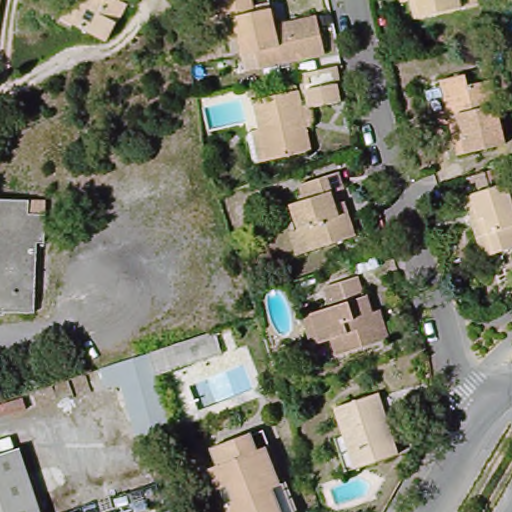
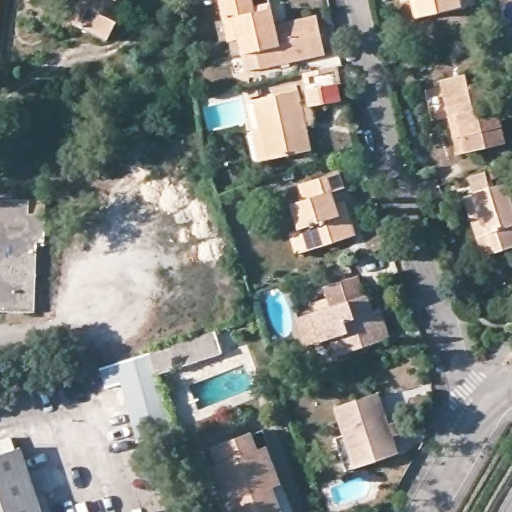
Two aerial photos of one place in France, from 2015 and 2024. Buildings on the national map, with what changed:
unchanged [(120,0),(127,4),(108,42),(70,22),(65,20),(75,0),(120,0)]
unchanged [(273,9),(278,25),(316,15),(326,54),(262,71),(257,51),(242,55),(238,40),(231,42),(221,2),(226,0),(254,0),(258,12),(273,9)]
unchanged [(413,19),(409,0),(474,0),(475,4),(413,19)]
unchanged [(442,76),(466,70),(469,80),(493,75),(508,138),(458,150),(454,132),(450,112),(442,76)]
unchanged [(254,136),(261,134),(254,106),(307,94),(304,79),(339,72),(343,89),(340,91),(343,104),(311,112),(314,127),(313,132),(309,134),(314,155),(268,166),(261,167),(254,136)]
unchanged [(300,229),(292,205),(307,201),(302,184),(340,172),(345,188),(333,192),(336,203),(340,202),(345,202),(350,213),(357,235),(316,248),(308,252),(300,229)]
unchanged [(480,257),(468,219),(462,197),(469,195),(502,184),(509,208),(512,207),(512,246),(480,257)]
unchanged [(45,243),(38,243),(35,313),(0,312),(0,200),(47,202),(45,243)]
unchanged [(308,321),(318,318),(338,312),(332,292),(364,281),(370,301),(372,300),(378,317),(386,313),(390,326),(396,342),(344,361),(338,343),(328,347),(318,351),(308,321)]
unchanged [(221,337),(228,360),(161,381),(155,358),(221,337)]
unchanged [(161,381),(177,437),(144,446),(126,390),(111,394),(105,375),(155,358),(161,381)]
unchanged [(336,438),(345,436),(337,407),(378,393),(388,423),(397,421),(402,435),(392,437),(397,453),(357,468),(347,472),(336,438)]
unchanged [(211,473),(218,471),(211,453),(250,437),(250,439),(262,435),(269,451),(264,452),(280,489),(283,487),(293,512),(226,512),(225,510),(219,493),(211,473)]
unchanged [(0,442),(12,438),(16,450),(19,448),(39,512),(0,512),(0,442)]

